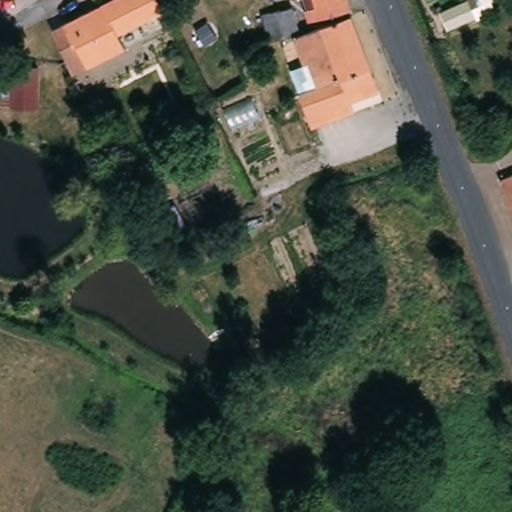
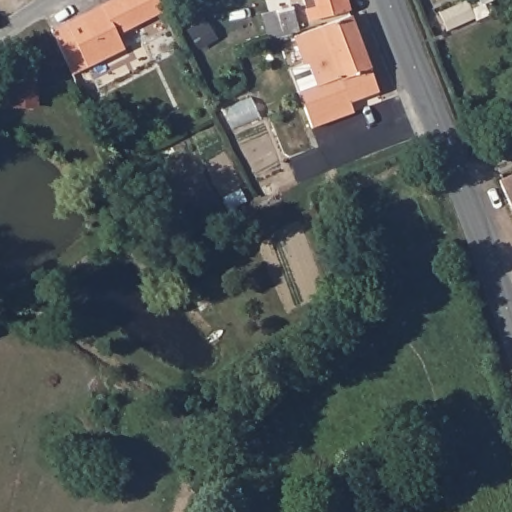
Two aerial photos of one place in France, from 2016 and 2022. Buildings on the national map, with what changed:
unchanged [(160,0),(165,10),(167,13),(121,34),(128,51),(90,68),(75,75),(68,60),(55,32),(70,25),(122,0),(160,0)]
unchanged [(325,14),(322,2),(321,0),(353,0),(355,6),(325,14)]
unchanged [(385,88),(356,99),(360,109),(317,124),(304,88),(327,80),(319,57),(313,59),(304,30),(296,32),(278,38),(269,14),(300,4),(309,27),(357,12),(385,88)]
unchanged [(36,45),(36,59),(24,59),(25,45),(36,45)]
unchanged [(40,72),(40,110),(15,110),(15,71),(40,72)]
unchanged [(512,177),(512,202),(504,180),(512,177)]

